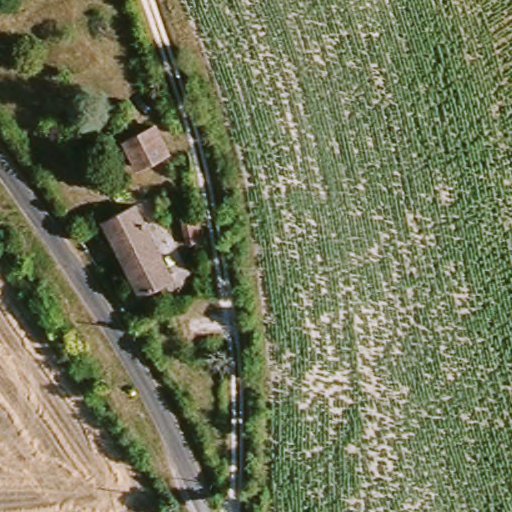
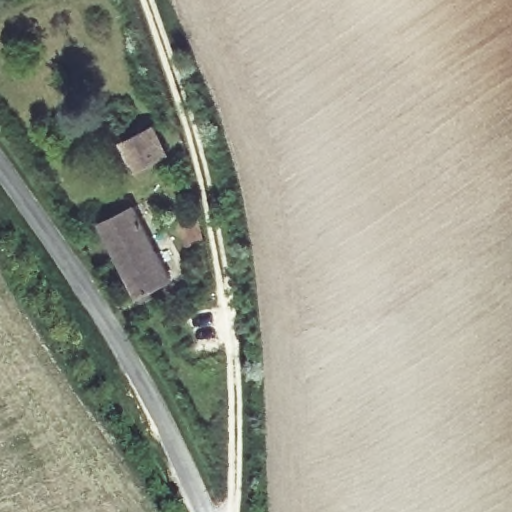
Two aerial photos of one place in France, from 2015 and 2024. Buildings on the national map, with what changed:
unchanged [(125,146),(154,136),(161,158),(133,170),(125,146)]
unchanged [(105,223),(133,212),(164,286),(138,298),(105,223)]

